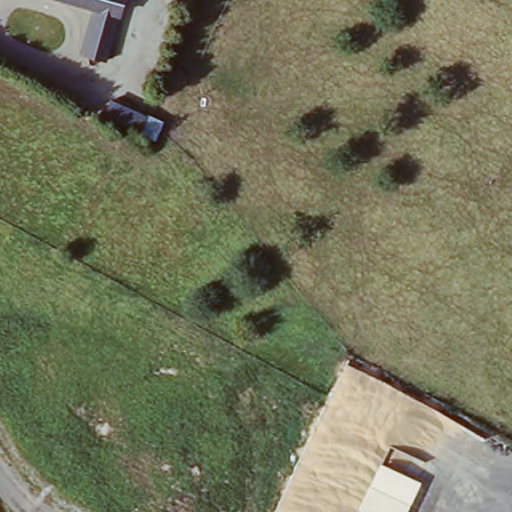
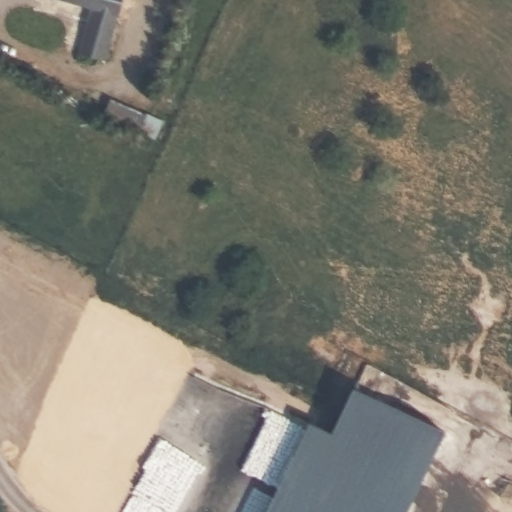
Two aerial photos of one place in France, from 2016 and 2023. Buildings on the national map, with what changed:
unchanged [(102,59),(73,49),(85,5),(68,0),(120,0),(102,59)]
new [(272,512),(311,428),(334,440),(356,396),(446,445),(415,512),(272,512)]
demolished [(424,458),(399,512),(356,512),(387,440),(424,458)]

